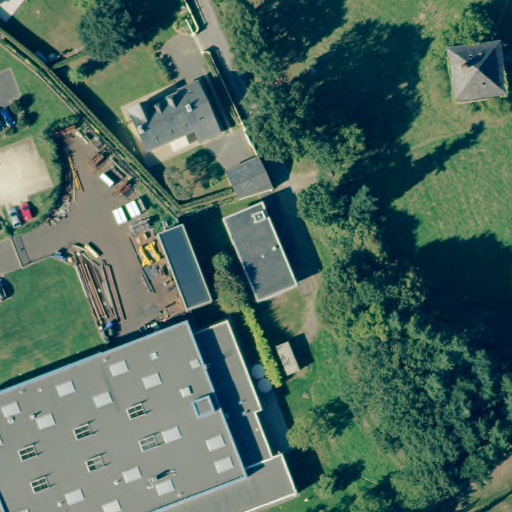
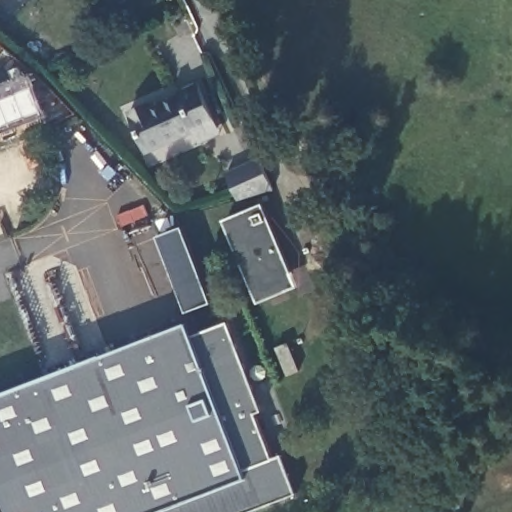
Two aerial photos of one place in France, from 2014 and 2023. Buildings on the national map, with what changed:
demolished [(497,45),(504,96),(456,103),(449,52),(497,45)]
unchanged [(201,144),(196,131),(181,138),(165,105),(181,98),(179,93),(198,85),(214,120),(221,135),(201,144)]
unchanged [(147,153),(129,113),(151,103),(153,110),(165,105),(181,138),(147,153)]
unchanged [(241,199),(228,171),(260,156),(274,188),(241,199)]
unchanged [(262,211),(290,277),(256,292),(228,225),(262,211)]
unchanged [(184,223),(214,299),(189,309),(158,233),(184,223)]
unchanged [(191,337),(227,323),(261,410),(253,414),(271,459),(282,455),(296,493),(248,512),(0,512),(0,394),(187,324),(191,337)]
unchanged [(289,342),(301,370),(289,374),(277,347),(289,342)]

